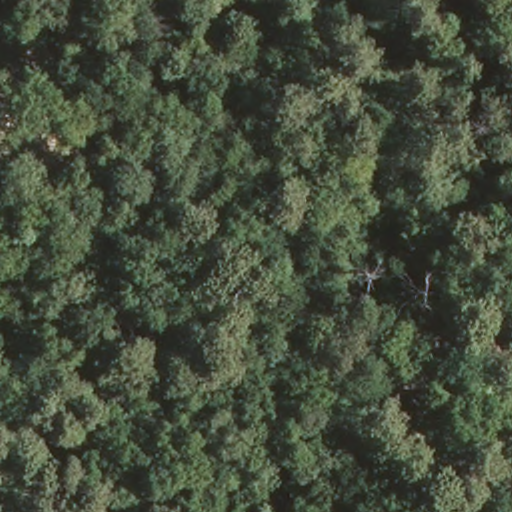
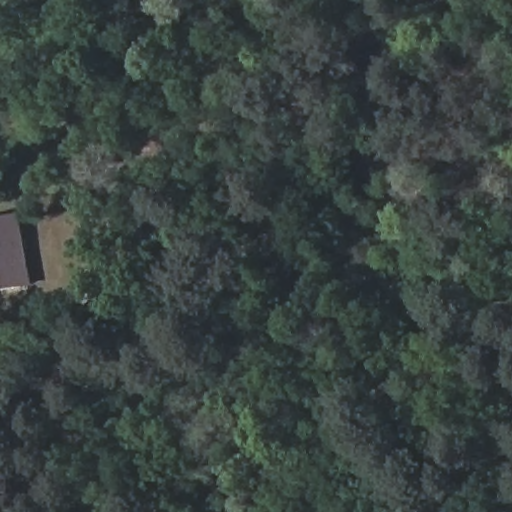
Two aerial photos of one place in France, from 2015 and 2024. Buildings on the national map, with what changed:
new [(40,288),(0,295),(0,221),(26,216),(40,288)]

